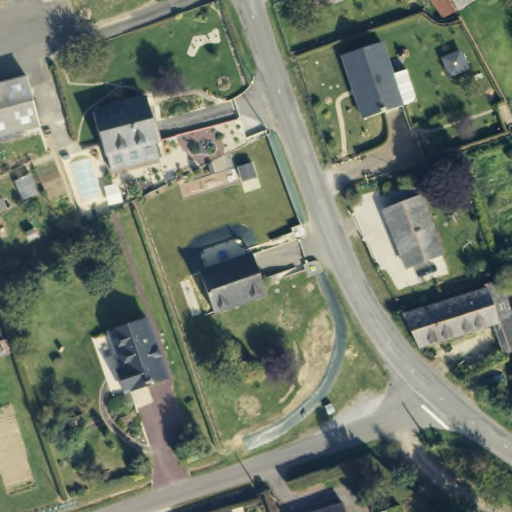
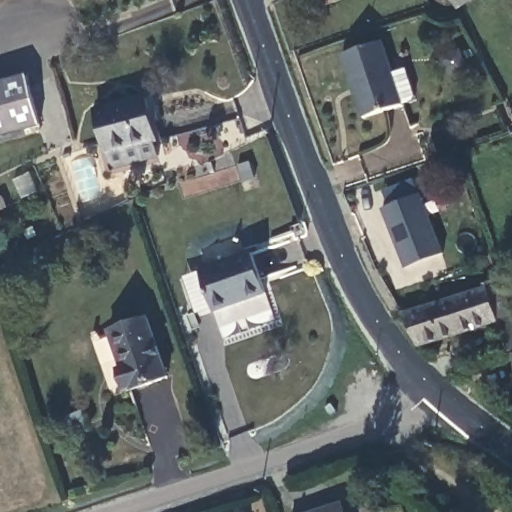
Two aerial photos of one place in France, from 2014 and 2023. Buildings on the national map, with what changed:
unchanged [(315,0),(347,0),(322,13),(315,0)]
unchanged [(471,0),(456,9),(443,17),(434,0),(471,0)]
unchanged [(403,108),(364,122),(344,58),(382,46),(392,75),(406,70),(416,103),(403,108)]
unchanged [(27,75),(41,123),(0,135),(0,82),(27,75)]
unchanged [(146,96),(161,157),(126,166),(112,169),(96,109),(105,107),(146,96)]
unchanged [(441,256),(408,267),(386,207),(394,205),(389,192),(416,183),(441,256)]
unchanged [(267,293),(217,311),(204,271),(254,253),(267,293)]
unchanged [(417,349),(417,348),(406,316),(486,288),(484,282),(499,276),(512,312),(512,351),(498,323),(417,349)]
unchanged [(124,393),(116,371),(121,369),(108,332),(145,318),(166,378),(124,393)]
unchanged [(353,497),(357,512),(308,512),(353,497)]
unchanged [(399,507),(401,512),(384,512),(399,507)]

